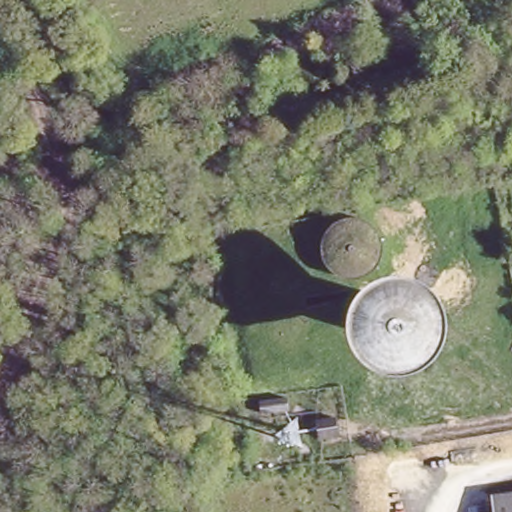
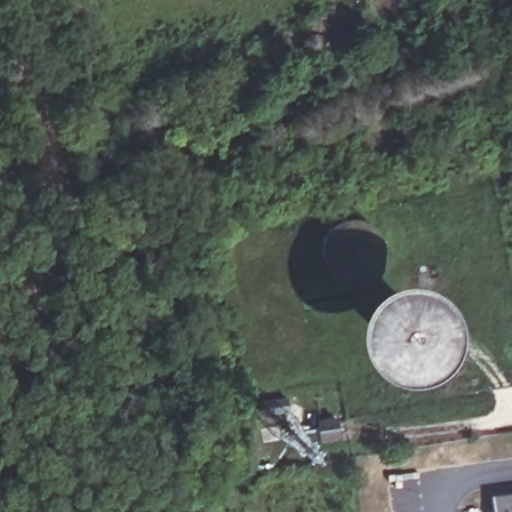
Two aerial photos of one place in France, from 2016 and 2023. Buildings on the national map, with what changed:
unchanged [(294,429),(271,434),(269,423),(291,418),(294,429)]
unchanged [(338,434),(319,438),(316,421),(334,418),(338,434)]
unchanged [(496,493),(512,491),(512,512),(498,512),(496,493)]

